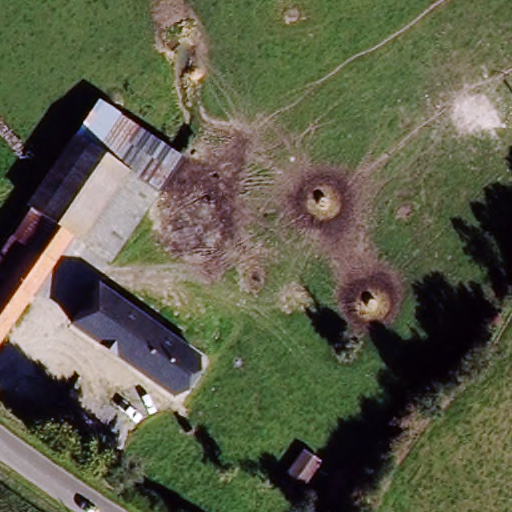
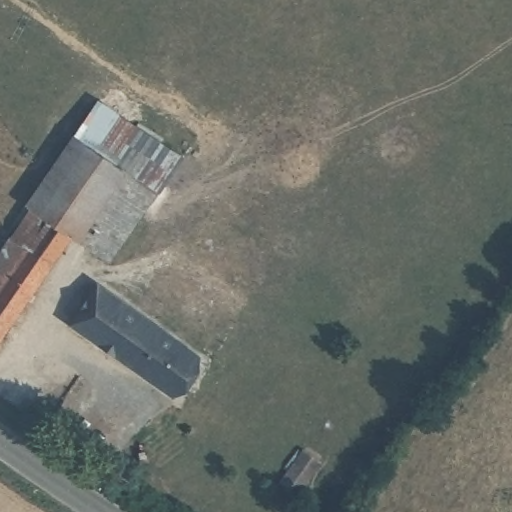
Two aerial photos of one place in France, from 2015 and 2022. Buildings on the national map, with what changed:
unchanged [(97,101),(140,130),(117,167),(73,137),(97,101)]
unchanged [(117,167),(140,130),(178,153),(112,264),(70,239),(117,167)]
unchanged [(73,137),(117,167),(70,239),(27,210),(73,137)]
unchanged [(59,258),(0,348),(0,253),(27,210),(70,239),(59,258)]
unchanged [(102,288),(167,336),(144,372),(77,323),(102,288)]
unchanged [(167,336),(198,360),(175,393),(144,372),(167,336)]
unchanged [(295,500),(280,487),(302,454),(318,467),(295,500)]

